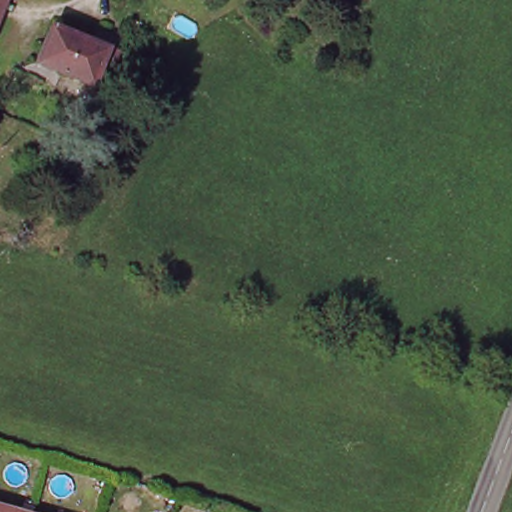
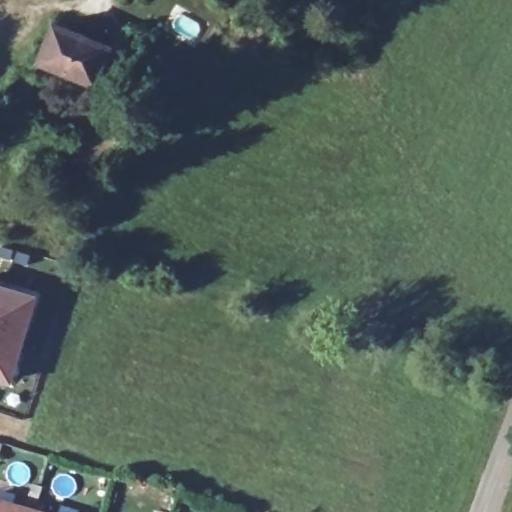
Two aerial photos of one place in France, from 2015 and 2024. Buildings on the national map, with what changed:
unchanged [(5,0),(0,11),(0,0),(5,0)]
unchanged [(342,0),(348,0),(348,2),(342,0)]
unchanged [(110,51),(93,85),(44,61),(60,27),(110,51)]
unchanged [(0,41),(0,28),(5,31),(0,41)]
new [(36,295),(10,383),(0,380),(0,284),(36,295)]
unchanged [(14,505),(13,507),(30,512),(0,512),(0,502),(14,505)]

